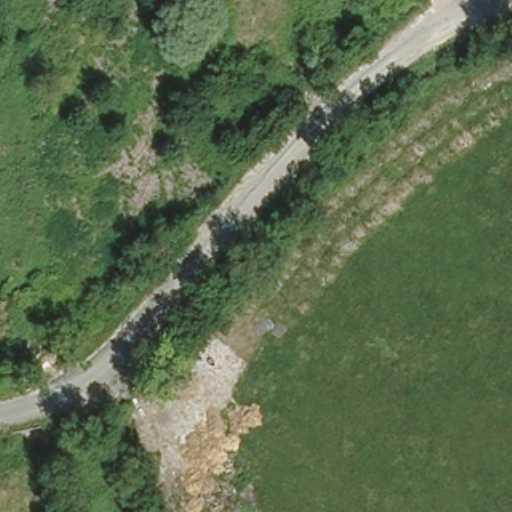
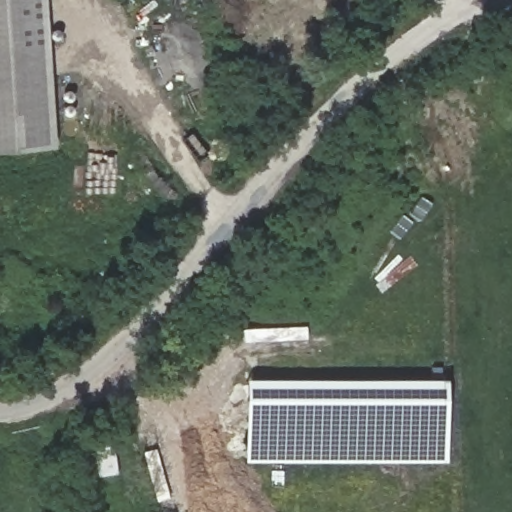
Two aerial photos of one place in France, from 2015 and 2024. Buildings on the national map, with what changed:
new [(0,150),(0,0),(46,0),(56,146),(0,150)]
new [(246,382),(448,382),(447,462),(245,463),(246,382)]

